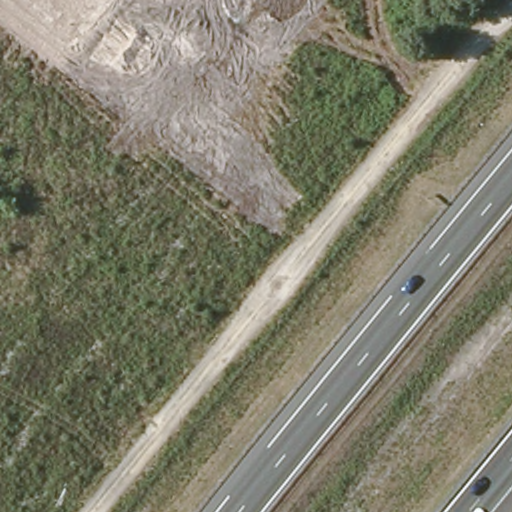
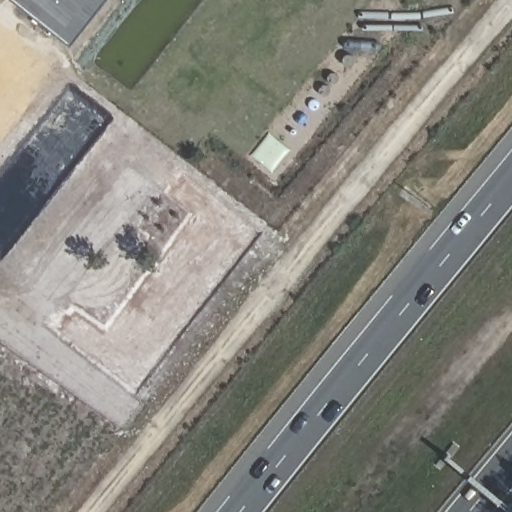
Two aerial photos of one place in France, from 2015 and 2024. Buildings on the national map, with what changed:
new [(72,46),(13,0),(108,0),(72,46)]

